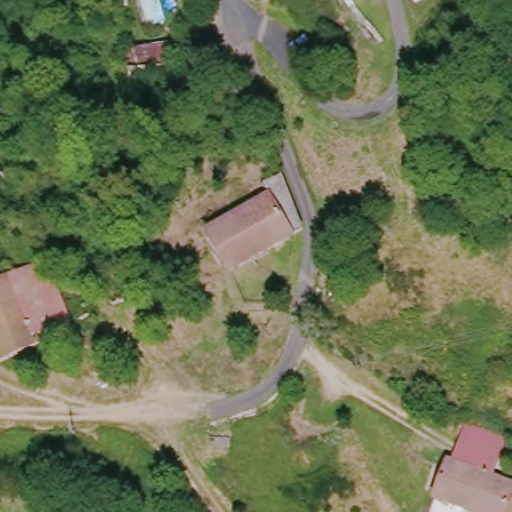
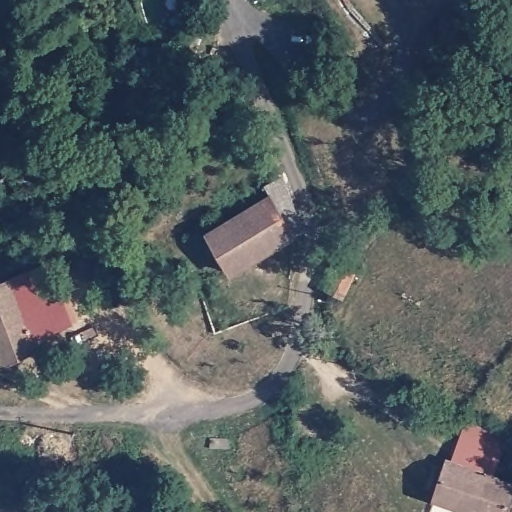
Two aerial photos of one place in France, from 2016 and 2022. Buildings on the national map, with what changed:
unchanged [(230,209),(236,219),(261,204),(256,195),(281,180),(300,235),(228,276),(199,227),(230,209)]
unchanged [(319,288),(330,267),(338,270),(350,281),(334,298),(324,292),(319,288)]
unchanged [(37,269),(63,325),(54,329),(46,332),(27,340),(33,352),(0,365),(0,284),(37,269)]
unchanged [(462,512),(422,493),(435,454),(446,461),(456,432),(459,422),(496,439),(486,462),(480,474),(506,482),(512,489),(512,499),(512,500),(507,512),(462,512)]

